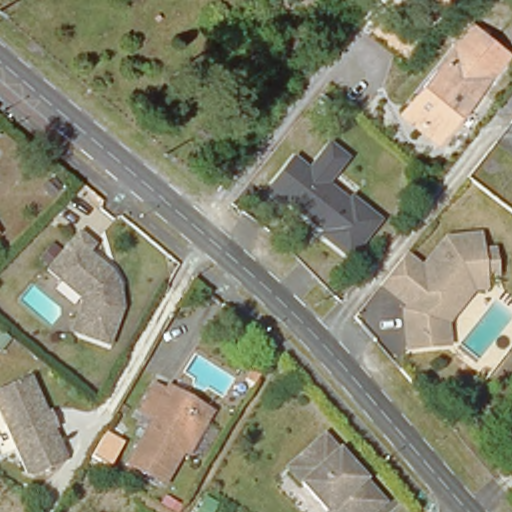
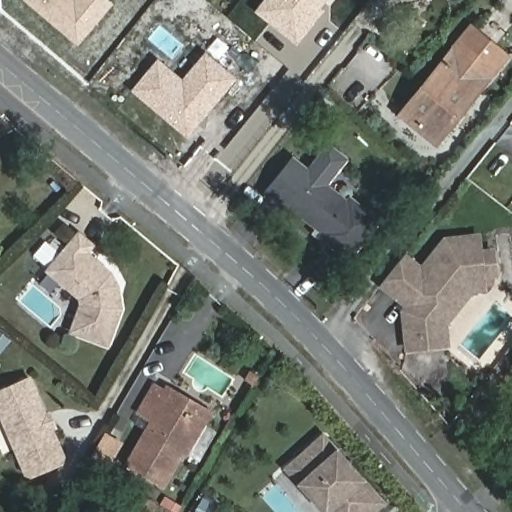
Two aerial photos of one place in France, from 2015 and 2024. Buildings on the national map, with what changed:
new [(77,46),(25,0),(109,0),(113,4),(77,46)]
new [(320,6),(324,10),(297,45),(256,13),(266,0),(326,0),(320,6)]
unchanged [(463,31),(507,65),(437,149),(400,120),(463,31)]
new [(187,137),(131,90),(157,57),(182,78),(205,50),(238,77),(187,137)]
unchanged [(308,165),(327,140),(349,155),(327,183),(348,199),(350,195),(382,219),(350,260),(316,237),(321,231),(267,187),(295,155),(308,165)]
unchanged [(77,232),(91,244),(85,251),(104,267),(116,277),(119,309),(104,345),(69,330),(80,303),(79,298),(79,296),(46,268),(77,232)]
unchanged [(475,291),(450,325),(451,346),(439,347),(410,349),(408,318),(415,309),(407,303),(385,285),(393,275),(407,256),(408,255),(426,270),(450,240),(483,237),(484,254),(496,253),(497,266),(498,277),(486,278),(487,290),(475,291)]
unchanged [(42,414),(46,412),(52,425),(48,427),(61,455),(59,461),(29,475),(23,472),(2,425),(0,420),(0,389),(15,382),(25,377),(42,414)]
unchanged [(131,469),(156,427),(140,417),(156,391),(172,401),(175,395),(208,415),(202,426),(165,490),(131,469)]
unchanged [(289,466),(324,435),(384,500),(371,512),(330,512),(327,509),(289,466)]

